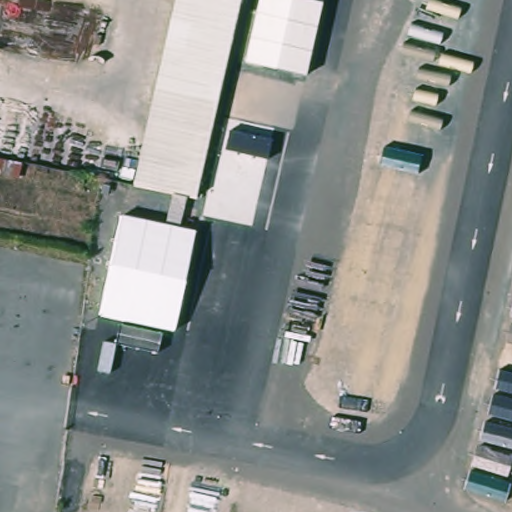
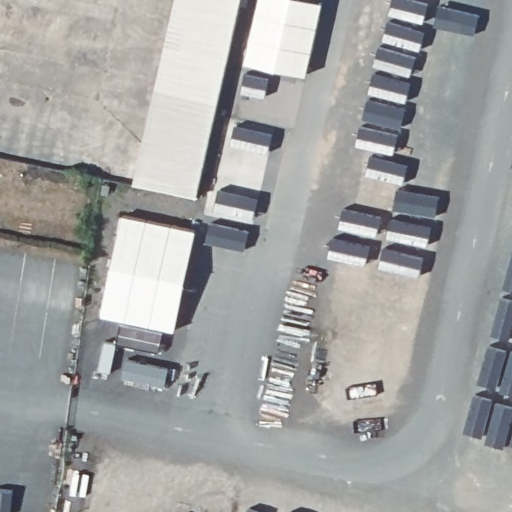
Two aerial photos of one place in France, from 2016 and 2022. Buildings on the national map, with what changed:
unchanged [(176,0),(240,0),(197,199),(136,186),(176,0)]
unchanged [(306,77),(246,64),(259,0),(312,0),(322,2),(306,77)]
unchanged [(0,160),(0,157),(1,157),(0,160)]
unchanged [(165,225),(172,193),(186,196),(181,229),(196,232),(174,331),(99,315),(122,216),(165,225)]

